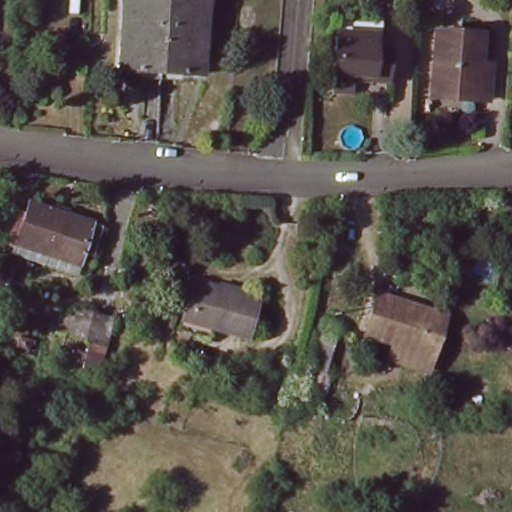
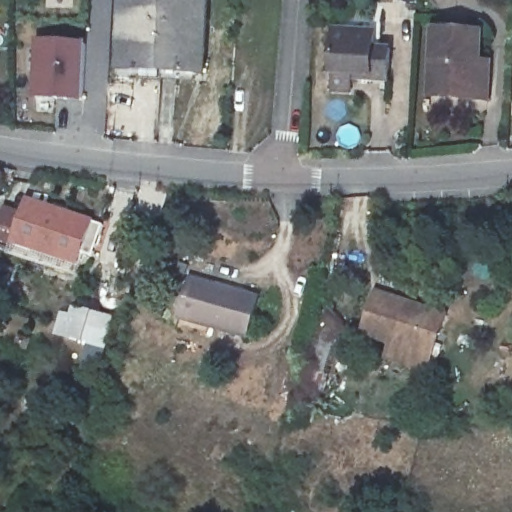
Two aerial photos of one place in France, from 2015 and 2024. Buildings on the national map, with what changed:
unchanged [(116,70),(120,0),(161,0),(157,72),(116,70)]
unchanged [(204,75),(157,72),(161,0),(207,0),(204,75)]
unchanged [(485,34),(479,96),(434,94),(441,30),(485,34)]
unchanged [(375,43),(374,57),(389,58),(387,89),(353,86),(354,81),(334,78),(337,41),(375,43)]
new [(35,44),(81,47),(78,102),(31,99),(35,44)]
unchanged [(0,246),(0,219),(6,201),(27,208),(31,195),(103,218),(97,239),(84,236),(77,259),(74,270),(0,246)]
unchanged [(179,326),(182,316),(195,276),(262,297),(250,336),(210,324),(205,334),(179,326)]
unchanged [(392,358),(397,343),(362,332),(376,290),(445,314),(432,355),(428,370),(392,358)]
unchanged [(62,336),(67,320),(108,332),(102,348),(62,336)]

